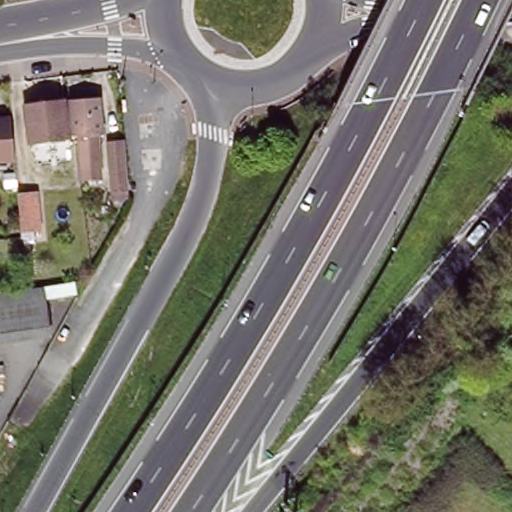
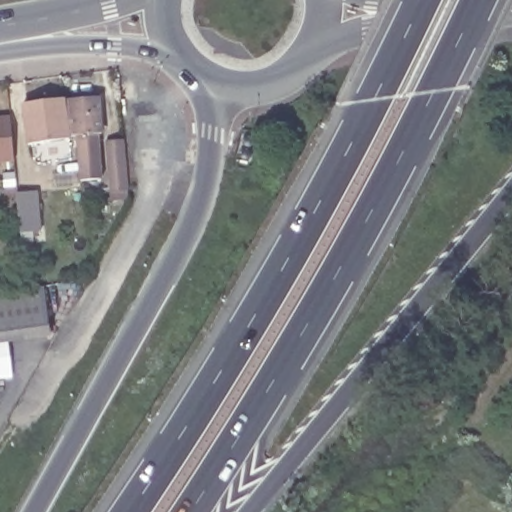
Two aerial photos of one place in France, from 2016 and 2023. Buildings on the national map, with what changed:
unchanged [(82,185),(77,139),(74,140),(68,103),(96,100),(102,183),(82,185)]
unchanged [(30,149),(24,108),(64,102),(70,144),(30,149)]
unchanged [(0,119),(11,118),(15,161),(0,162),(0,119)]
unchanged [(114,194),(111,158),(124,156),(127,192),(114,194)]
unchanged [(23,248),(22,235),(19,208),(40,206),(44,246),(23,248)]
unchanged [(0,294),(45,287),(51,335),(0,344),(0,294)]

